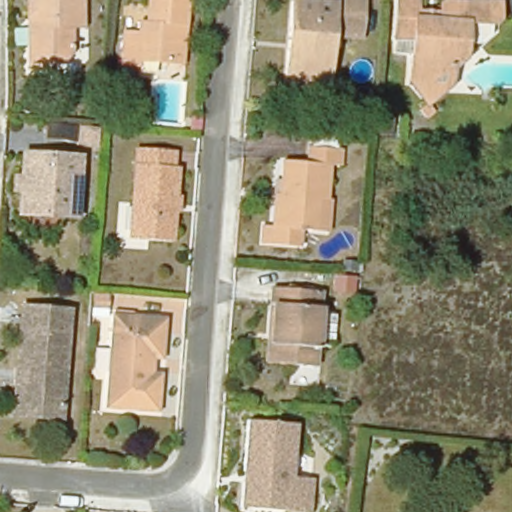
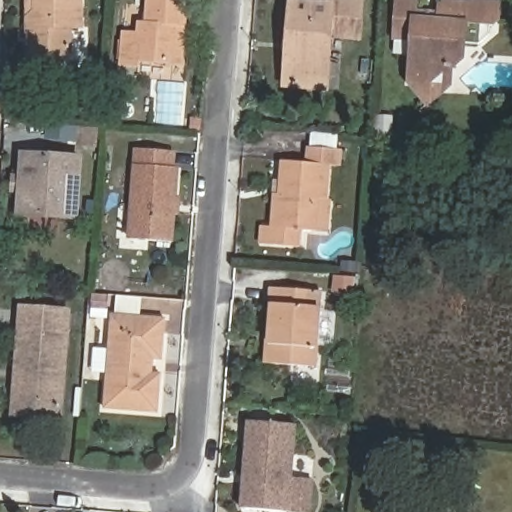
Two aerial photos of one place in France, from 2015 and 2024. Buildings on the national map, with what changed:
unchanged [(73,25),(72,50),(62,62),(52,62),(52,68),(31,68),(31,18),(37,8),(38,0),(84,0),(84,26),(73,25)]
unchanged [(139,68),(123,66),(125,36),(138,37),(140,25),(147,25),(149,0),(188,0),(186,31),(182,66),(174,66),(155,65),(154,72),(138,71),(139,68)]
unchanged [(412,77),(415,33),(397,31),(400,0),(418,0),(417,11),(442,12),(443,0),(502,0),(502,10),(497,12),(492,28),(482,38),(461,43),(456,62),(451,65),(443,64),(440,67),(454,84),(433,101),(412,77)]
unchanged [(312,91),(291,89),(297,5),(338,7),(338,2),(367,4),(365,40),(336,38),(333,79),(332,92),(312,91)]
unchanged [(176,151),(175,165),(180,166),(177,196),(172,196),(171,209),(176,209),(174,242),(132,239),(139,148),(176,151)]
unchanged [(81,153),(77,213),(21,209),(25,149),(81,153)]
unchanged [(339,169),(328,168),(325,200),(318,200),(315,232),(300,231),(298,249),(260,246),(261,228),(272,229),(275,196),(280,196),(282,164),(307,166),(308,150),(340,153),(339,169)]
unchanged [(317,377),(269,372),(271,352),(273,352),(277,314),(275,314),(276,298),(323,302),(317,377)]
unchanged [(20,364),(24,302),(71,305),(63,412),(24,409),(17,409),(20,364)]
unchanged [(166,358),(157,358),(156,373),(165,374),(162,413),(107,408),(115,314),(169,318),(166,358)]
unchanged [(250,427),(295,430),(291,484),(312,486),(311,512),(242,512),(245,489),(246,477),(250,427)]

